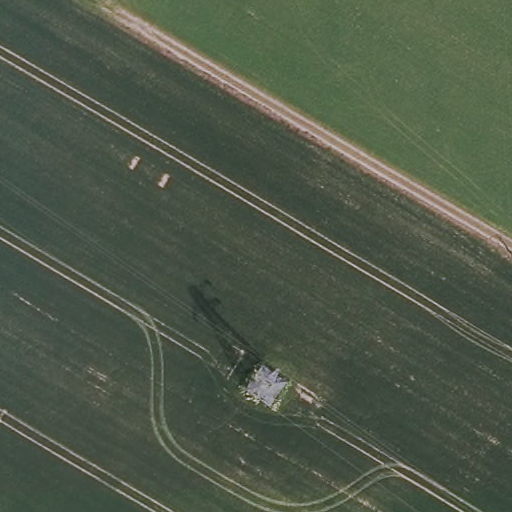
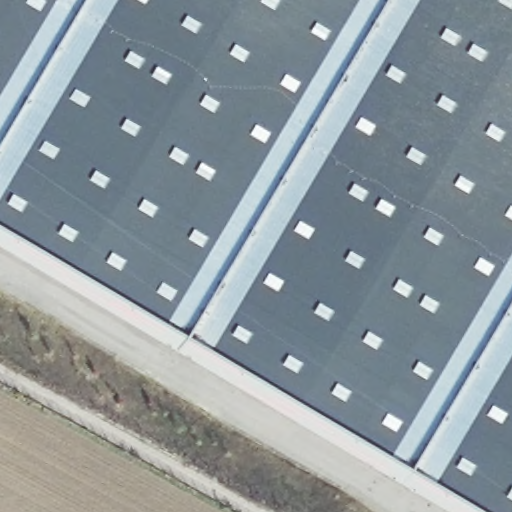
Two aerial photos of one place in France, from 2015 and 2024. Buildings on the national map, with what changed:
new [(512,512),(453,512),(0,244),(0,0),(512,0),(512,512)]

